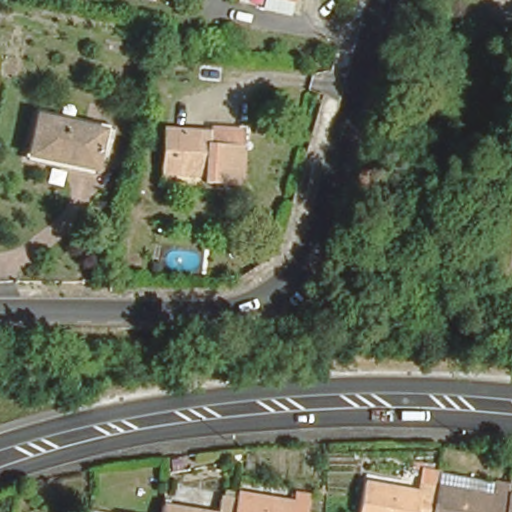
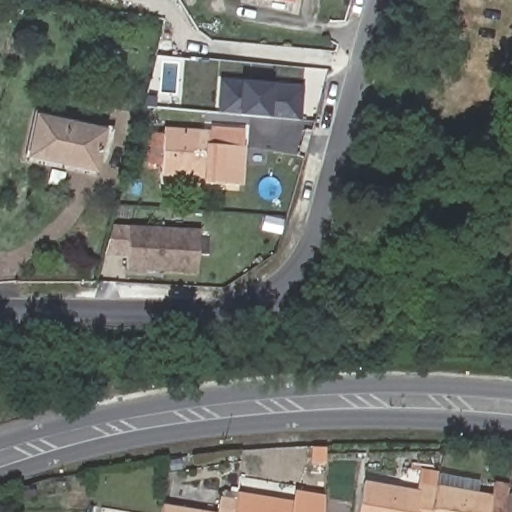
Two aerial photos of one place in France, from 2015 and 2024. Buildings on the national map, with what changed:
unchanged [(155,4),(142,0),(156,0),(155,4)]
unchanged [(254,0),(295,0),(292,9),(254,0)]
new [(216,112),(219,79),(304,86),(301,120),(216,112)]
unchanged [(27,152),(38,115),(75,127),(101,134),(90,171),(69,165),(27,152)]
unchanged [(163,185),(164,169),(168,127),(214,131),(214,125),(247,127),(243,182),(208,179),(208,172),(204,172),(203,188),(163,185)]
new [(126,270),(126,256),(104,255),(111,225),(199,229),(196,273),(126,270)]
demolished [(162,265),(161,272),(151,271),(151,264),(162,265)]
unchanged [(339,303),(329,313),(319,302),(328,293),(339,303)]
unchanged [(357,512),(361,486),(419,495),(421,487),(436,490),(433,512),(357,512)]
unchanged [(509,512),(433,512),(436,490),(492,499),(493,497),(511,500),(511,501),(509,512)]
unchanged [(299,497),(313,499),(311,512),(240,512),(241,504),(243,494),(298,503),(299,497)]
unchanged [(512,512),(509,512),(511,501),(511,500),(512,500),(512,512)]
unchanged [(167,512),(168,508),(193,512),(167,512)]
unchanged [(232,512),(225,512),(225,511),(232,512)]

